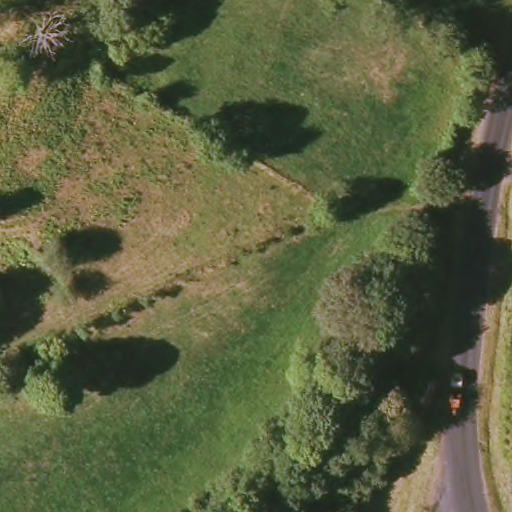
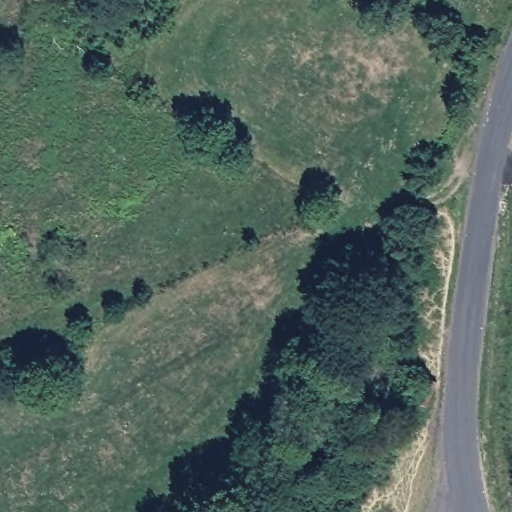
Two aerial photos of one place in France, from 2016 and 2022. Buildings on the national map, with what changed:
unchanged [(447,398),(435,385),(453,368),(464,379),(447,398)]

